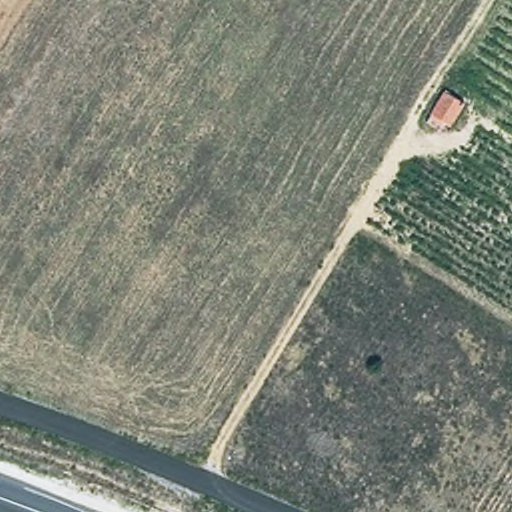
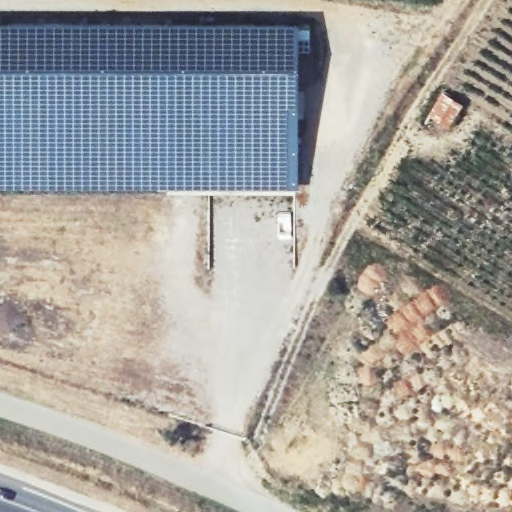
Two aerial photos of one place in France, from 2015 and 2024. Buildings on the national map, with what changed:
new [(297,24),(298,190),(0,189),(0,23),(297,24)]
unchanged [(422,125),(439,95),(458,106),(441,135),(422,125)]

